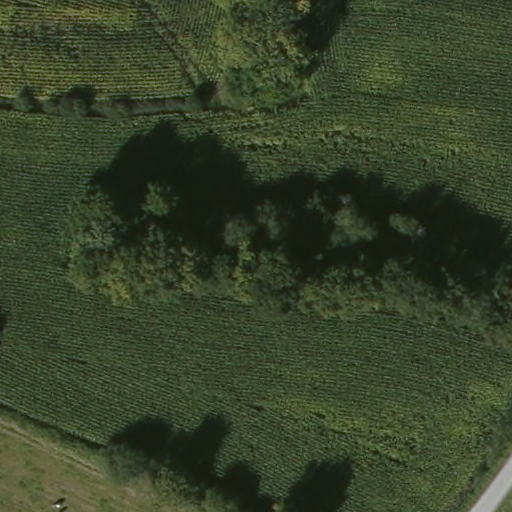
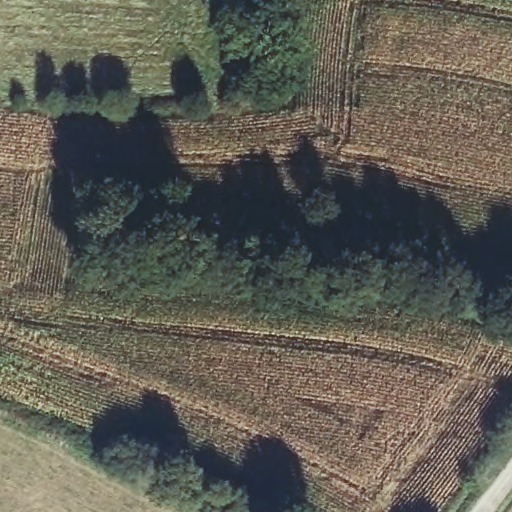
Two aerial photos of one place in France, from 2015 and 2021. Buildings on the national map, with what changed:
[]

